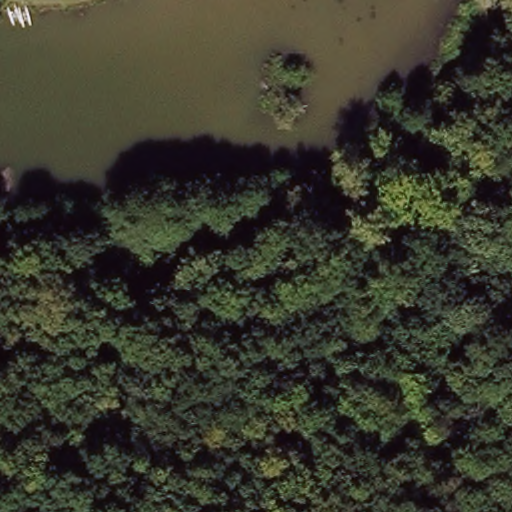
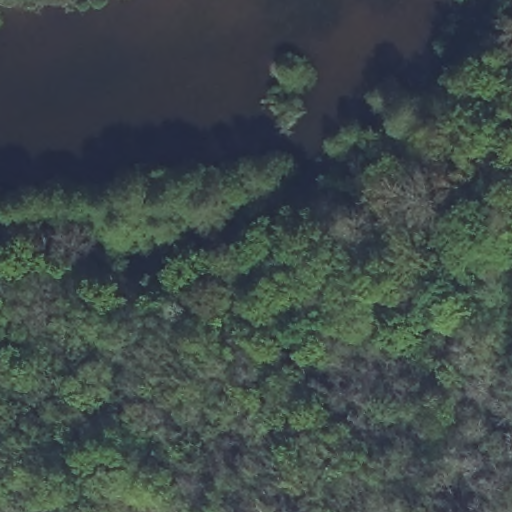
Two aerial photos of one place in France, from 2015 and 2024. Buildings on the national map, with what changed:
[]

